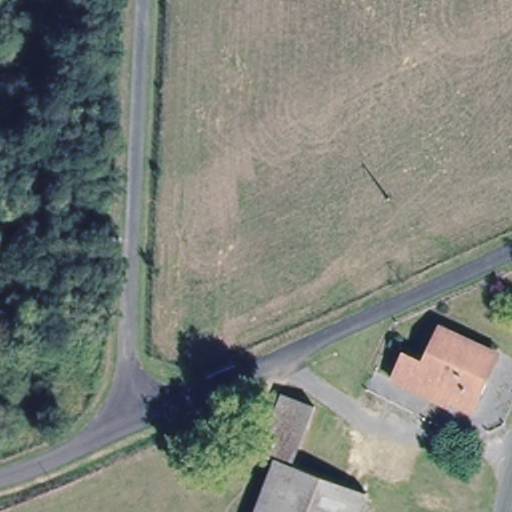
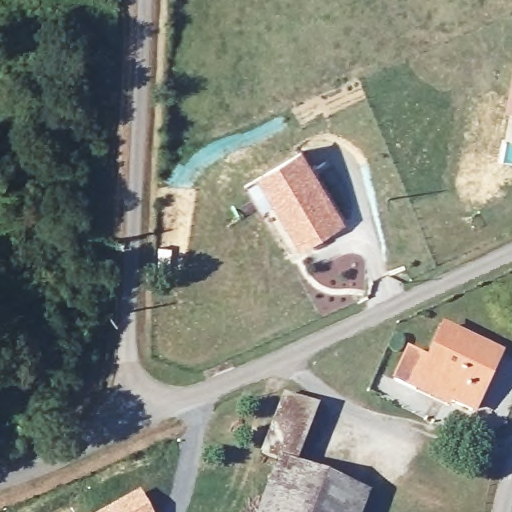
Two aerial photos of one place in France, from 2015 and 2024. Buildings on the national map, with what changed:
new [(301,152),(340,222),(302,244),(262,175),(301,152)]
unchanged [(502,351),(476,406),(454,396),(451,403),(397,375),(409,347),(429,357),(445,325),(502,351)]
unchanged [(320,406),(309,432),(298,462),(282,458),(266,452),(288,396),(320,406)]
unchanged [(371,492),(364,512),(261,512),(282,458),(298,462),(371,492)]
new [(138,492),(150,512),(103,512),(138,492)]

